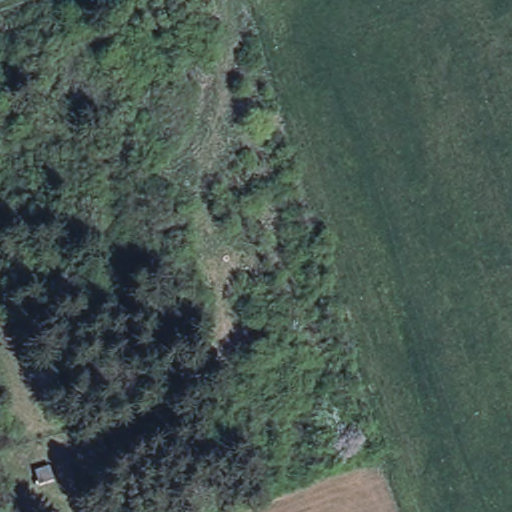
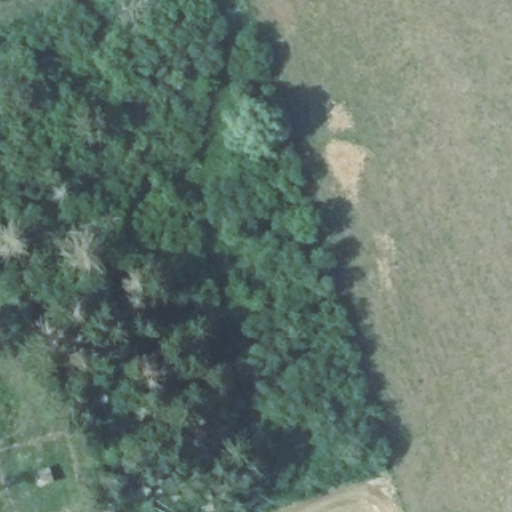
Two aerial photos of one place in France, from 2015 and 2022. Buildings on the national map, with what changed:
unchanged [(52,486),(37,491),(32,470),(45,465),(52,486)]

